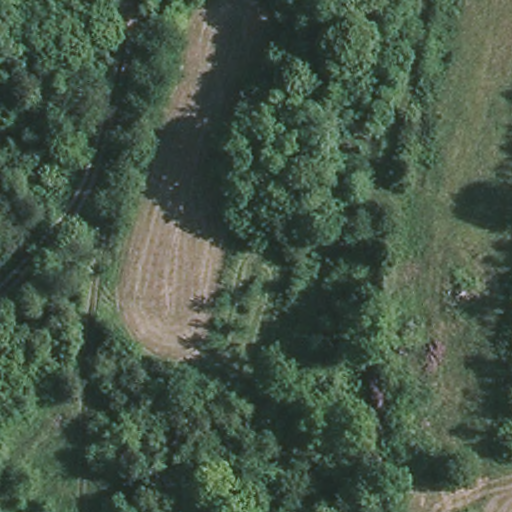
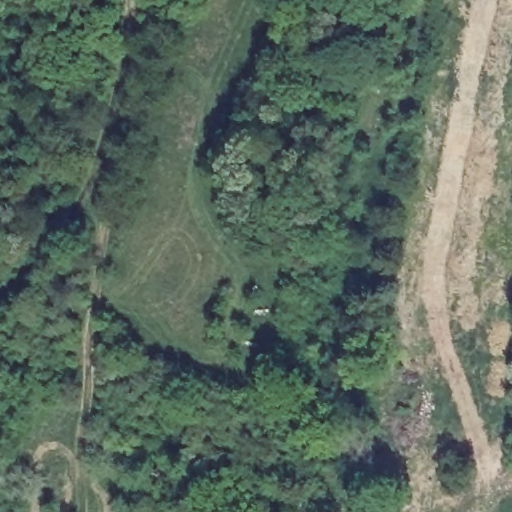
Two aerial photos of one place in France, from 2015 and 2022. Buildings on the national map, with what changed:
unchanged [(386,297),(355,293),(356,264),(390,270),(386,297)]

